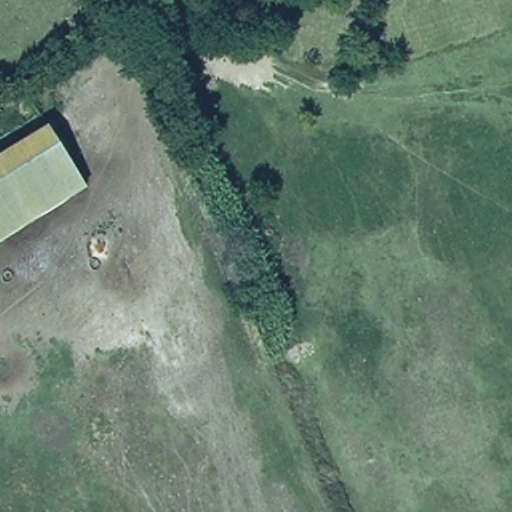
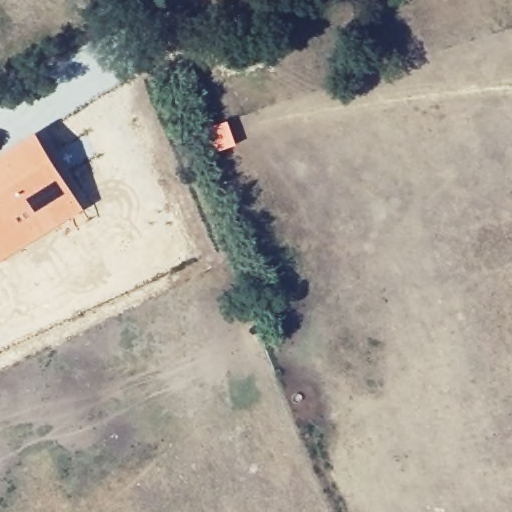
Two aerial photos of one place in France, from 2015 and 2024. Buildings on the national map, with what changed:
unchanged [(0,239),(0,152),(38,129),(62,165),(75,158),(88,179),(75,188),(76,192),(0,239)]

